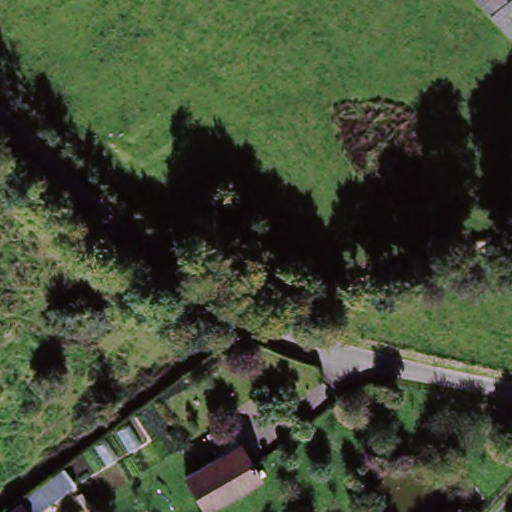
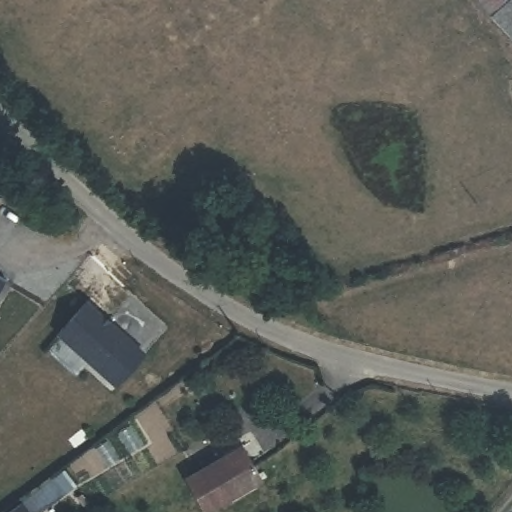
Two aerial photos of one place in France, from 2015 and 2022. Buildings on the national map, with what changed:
unchanged [(476,0),(493,0),(484,9),(476,0)]
unchanged [(512,0),(512,39),(485,11),(484,9),(493,0),(512,0)]
new [(6,280),(0,290),(0,276),(6,280)]
new [(146,353),(116,387),(57,333),(86,300),(146,353)]
unchanged [(237,447),(261,477),(209,512),(206,512),(185,484),(237,447)]
unchanged [(70,487),(37,512),(28,512),(19,501),(56,469),(70,487)]

